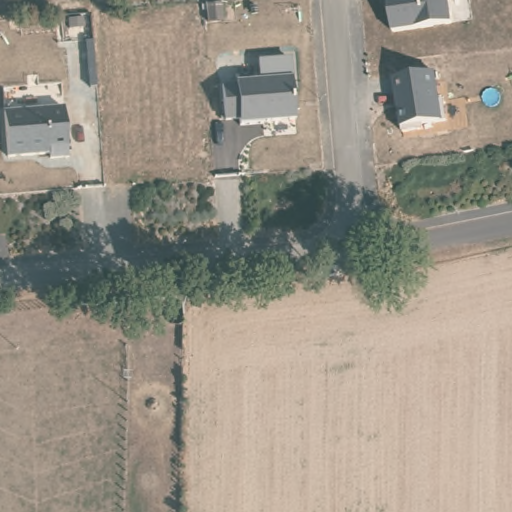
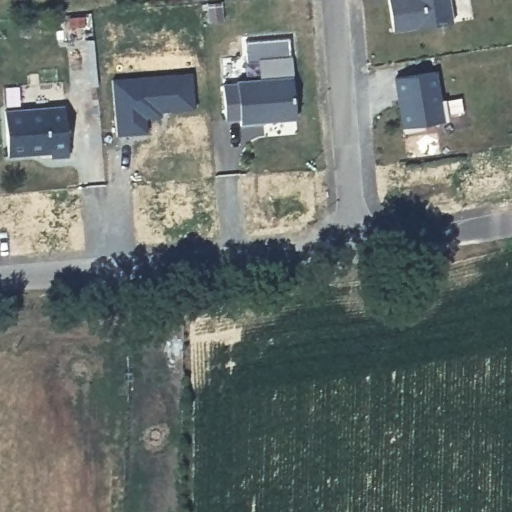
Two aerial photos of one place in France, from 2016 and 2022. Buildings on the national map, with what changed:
unchanged [(390,35),(386,0),(450,0),(454,24),(390,35)]
unchanged [(256,61),(256,63),(246,63),(245,42),(290,39),(292,58),(297,122),(223,126),(221,89),(257,82),(256,61)]
new [(161,112),(161,117),(146,118),(147,132),(115,135),(110,80),(193,74),(196,108),(161,112)]
unchanged [(400,127),(392,79),(435,74),(444,122),(400,127)]
unchanged [(62,107),(66,156),(50,157),(49,152),(7,156),(4,112),(62,107)]
unchanged [(185,300),(185,312),(185,325),(173,326),(172,301),(185,300)]

